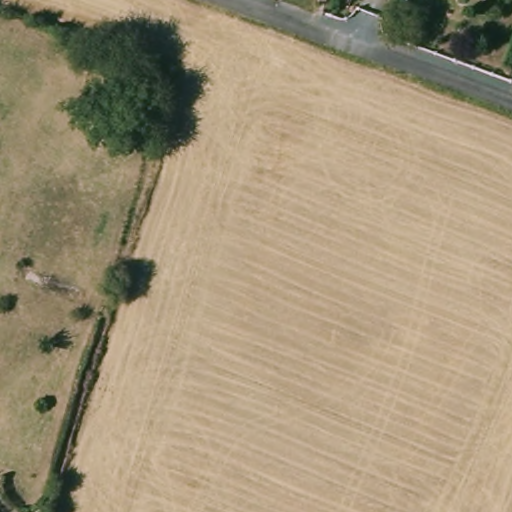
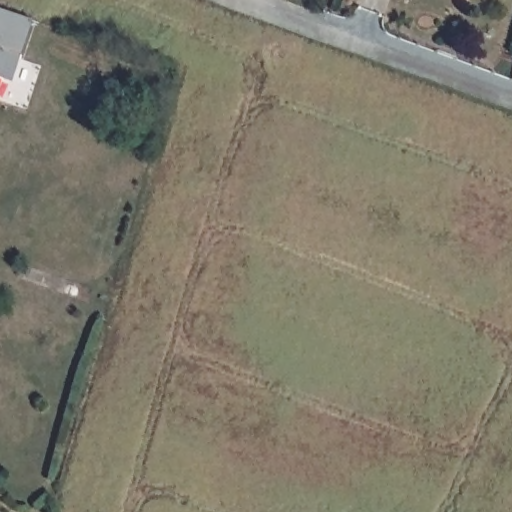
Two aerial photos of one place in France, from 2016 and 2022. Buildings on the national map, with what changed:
new [(0,78),(0,9),(29,19),(10,81),(0,78)]

